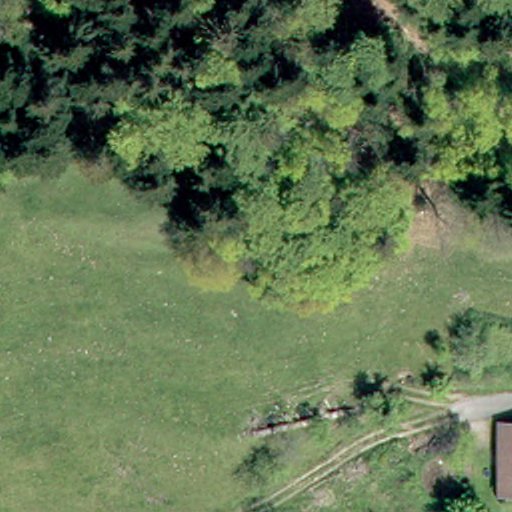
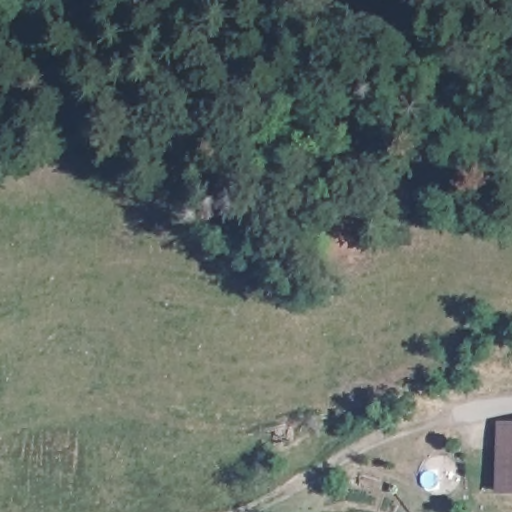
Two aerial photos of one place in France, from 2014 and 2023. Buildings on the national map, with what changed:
unchanged [(498,475),(501,427),(512,428),(512,490),(497,489),(498,475)]

